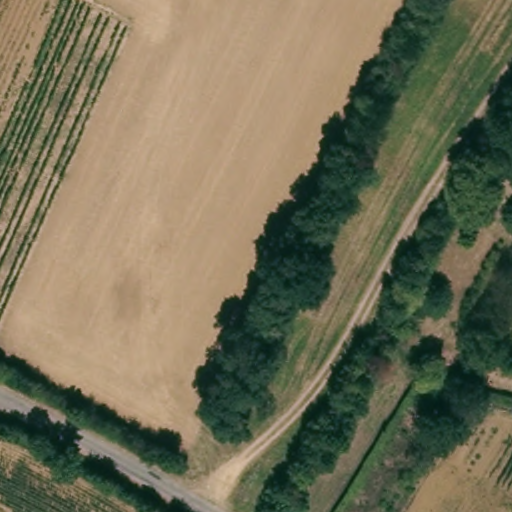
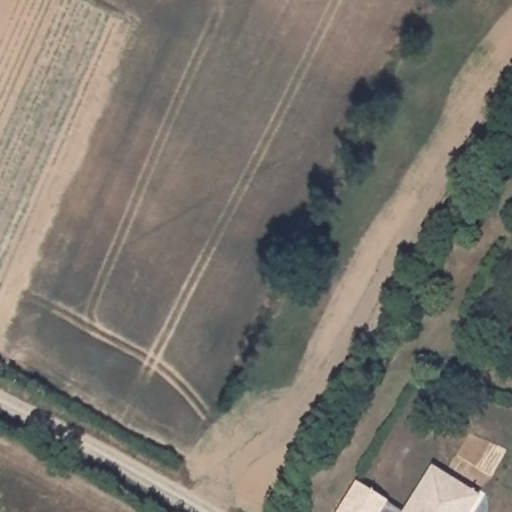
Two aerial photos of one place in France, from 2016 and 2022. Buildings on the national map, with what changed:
new [(387,501),(402,512),(432,465),(481,495),(470,512),(380,512),(387,501)]

